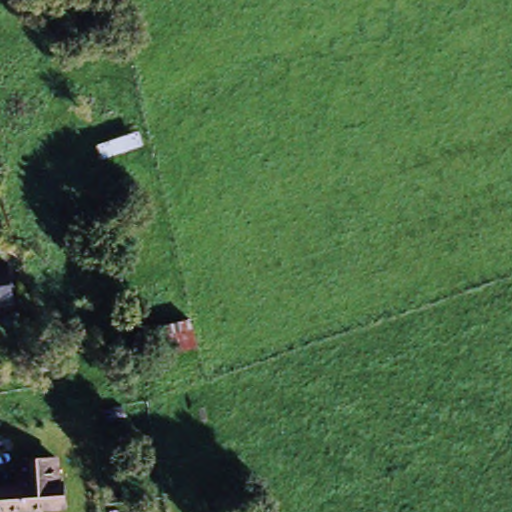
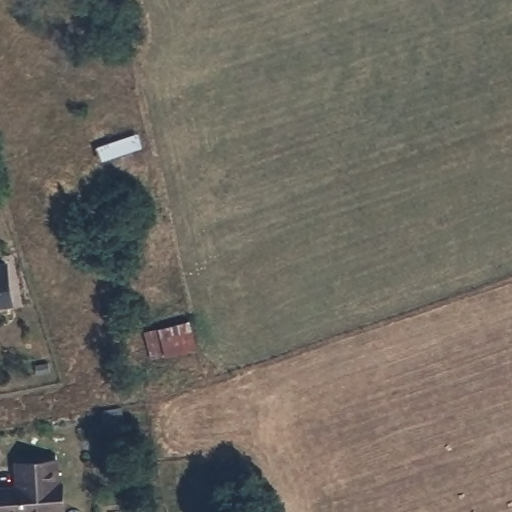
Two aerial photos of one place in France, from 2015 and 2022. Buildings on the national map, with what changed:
unchanged [(93,150),(108,144),(101,123),(129,111),(147,146),(98,163),(93,150)]
unchanged [(193,321),(196,353),(152,357),(145,330),(193,321)]
unchanged [(18,467),(56,463),(59,488),(63,487),(67,512),(0,512),(0,495),(21,492),(18,467)]

